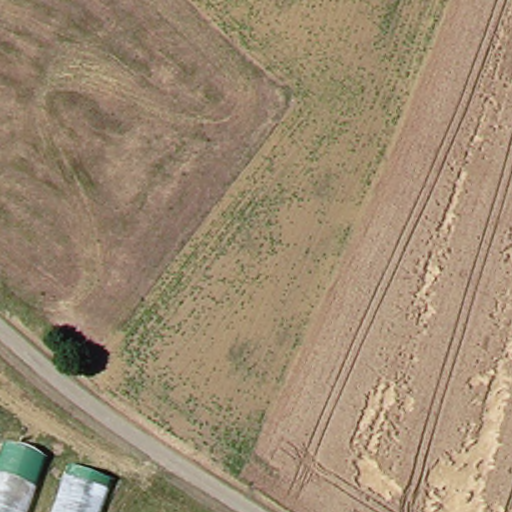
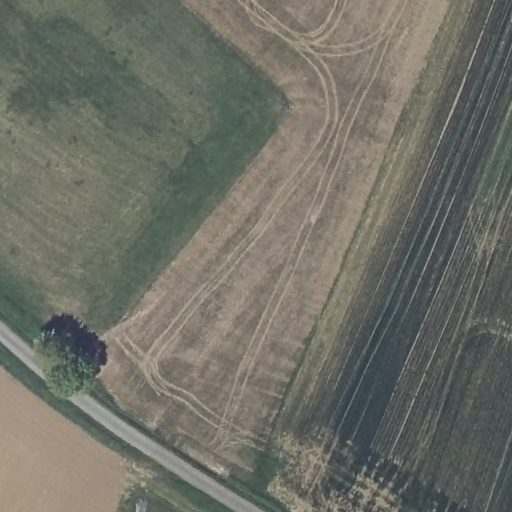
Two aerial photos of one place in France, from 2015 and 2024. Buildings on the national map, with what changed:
demolished [(50,458),(31,512),(0,512),(0,464),(6,447),(50,458)]
demolished [(112,481),(102,512),(55,512),(70,469),(112,481)]

